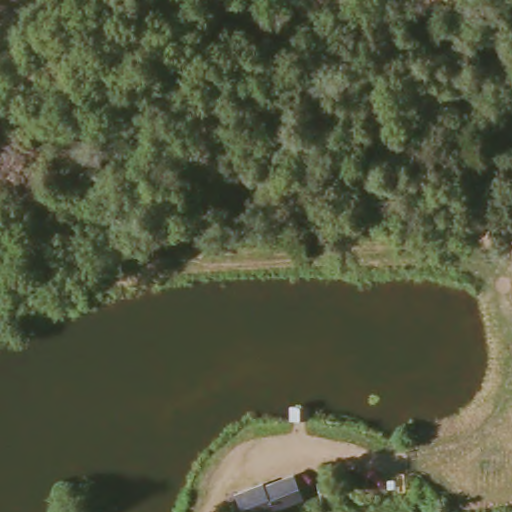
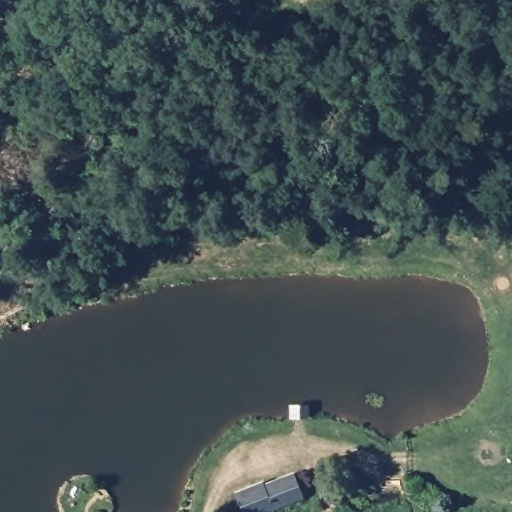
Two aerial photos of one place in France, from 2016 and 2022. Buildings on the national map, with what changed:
unchanged [(262,512),(240,512),(232,490),(261,479),(262,483),(292,471),(303,497),(262,512)]

